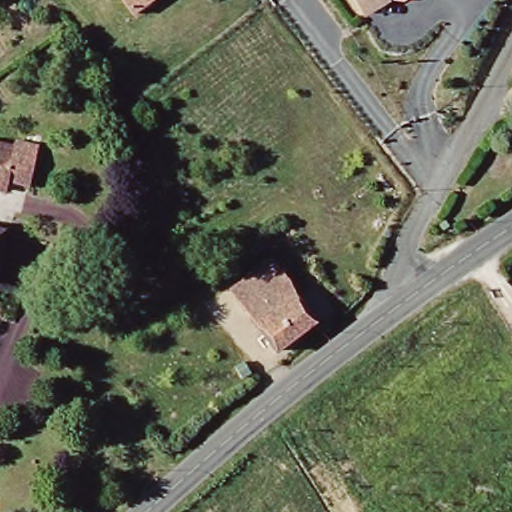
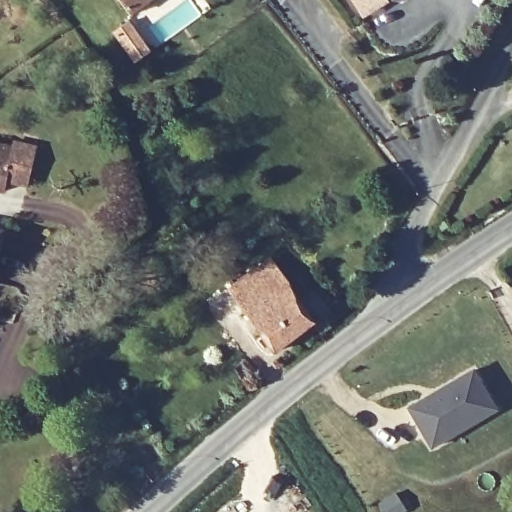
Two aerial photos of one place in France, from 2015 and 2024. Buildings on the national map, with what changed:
unchanged [(135,16),(124,0),(160,0),(135,16)]
unchanged [(353,0),(387,0),(389,4),(362,16),(353,0)]
new [(123,23),(144,54),(131,63),(109,32),(123,23)]
unchanged [(0,179),(0,131),(22,137),(18,152),(27,155),(19,184),(0,179)]
unchanged [(0,254),(0,224),(6,226),(0,254)]
unchanged [(235,258),(215,268),(205,254),(227,242),(235,258)]
unchanged [(318,322),(279,353),(234,294),(273,265),(299,299),(318,322)]
new [(408,407),(474,369),(499,410),(434,449),(408,407)]

